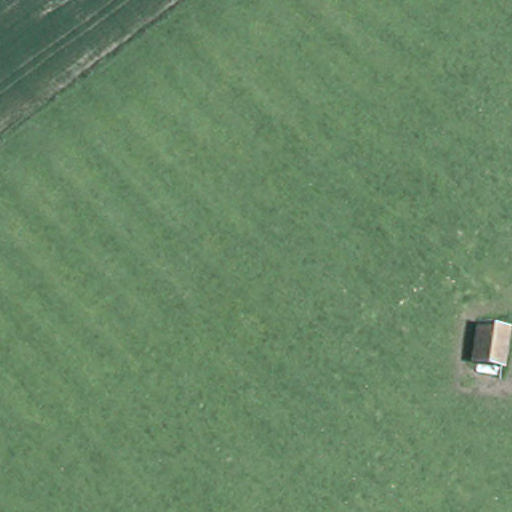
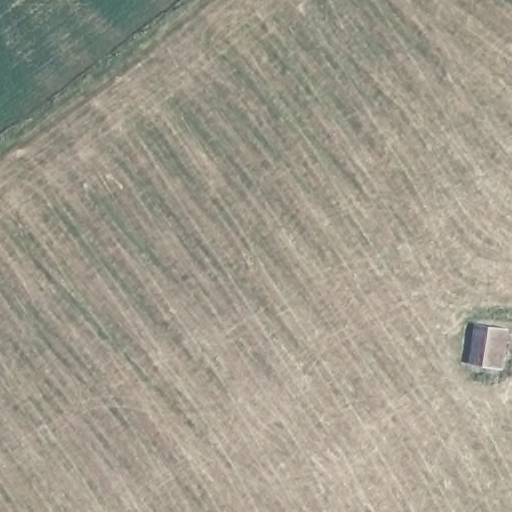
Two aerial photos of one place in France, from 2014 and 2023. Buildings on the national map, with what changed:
unchanged [(475,320),(512,323),(512,351),(510,368),(473,365),(475,320)]

